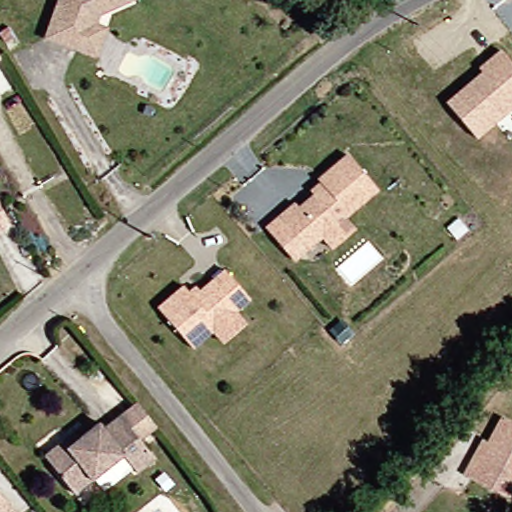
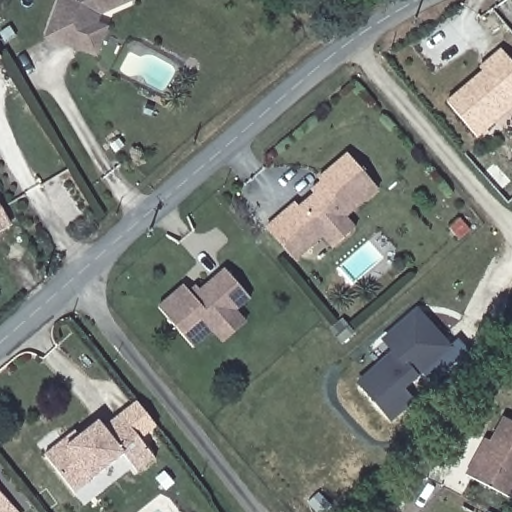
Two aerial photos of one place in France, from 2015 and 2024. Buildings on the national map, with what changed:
unchanged [(88,60),(55,46),(38,38),(54,0),(129,0),(130,4),(94,19),(90,27),(100,32),(88,60)]
unchanged [(512,65),(512,112),(480,141),(448,107),(483,75),(479,72),(486,65),(500,52),(512,65)]
unchanged [(264,228),(277,216),(294,202),(298,207),(313,196),(309,189),(318,181),(315,177),(344,154),(380,191),(346,217),(358,229),(333,249),(323,238),(309,250),(294,264),(264,228)]
unchanged [(0,207),(12,223),(0,232),(0,207)]
unchanged [(224,344),(212,330),(191,348),(156,309),(180,287),(187,293),(193,287),(197,292),(222,270),(247,298),(234,309),(249,326),(224,344)]
new [(386,336),(397,326),(418,307),(442,333),(443,334),(450,342),(459,333),(471,346),(434,380),(423,368),(404,385),(415,397),(394,416),(362,380),(397,348),(386,336)]
unchanged [(98,429),(132,401),(153,425),(135,440),(150,458),(133,472),(119,455),(70,495),(36,455),(54,439),(66,430),(71,435),(90,420),(98,429)]
unchanged [(512,425),(512,493),(508,500),(464,477),(473,462),(484,441),(489,444),(502,420),(512,425)]

